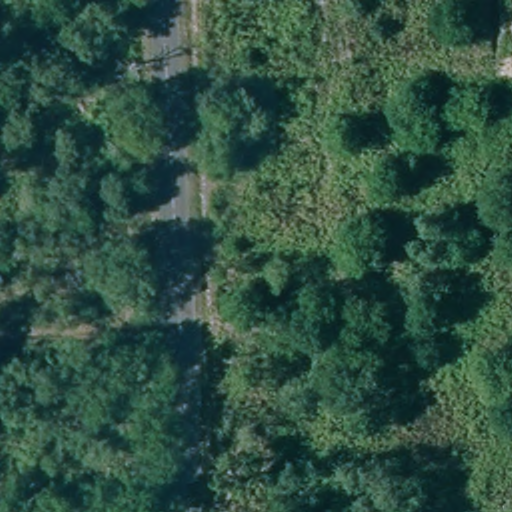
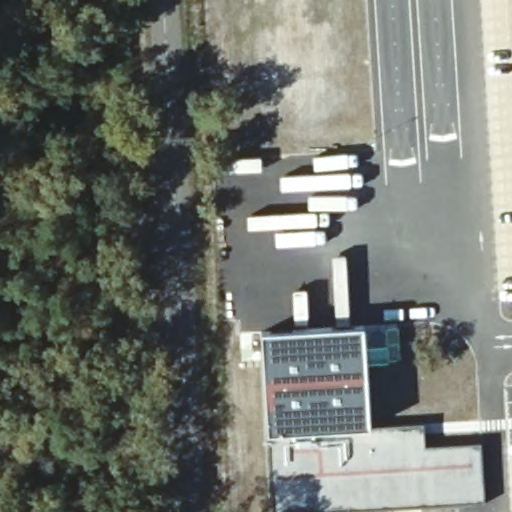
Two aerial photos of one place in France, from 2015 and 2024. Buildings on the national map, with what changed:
new [(365,324),(372,425),(338,430),(267,434),(261,330),(365,324)]
new [(338,430),(372,425),(424,423),(425,445),(480,442),(483,502),(373,508),(337,512),(273,512),(267,434),(338,430)]

